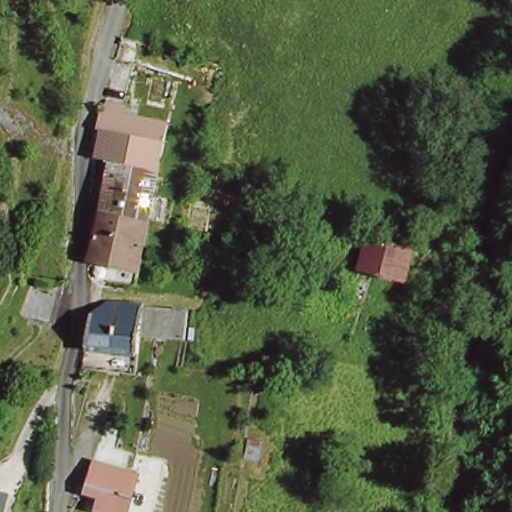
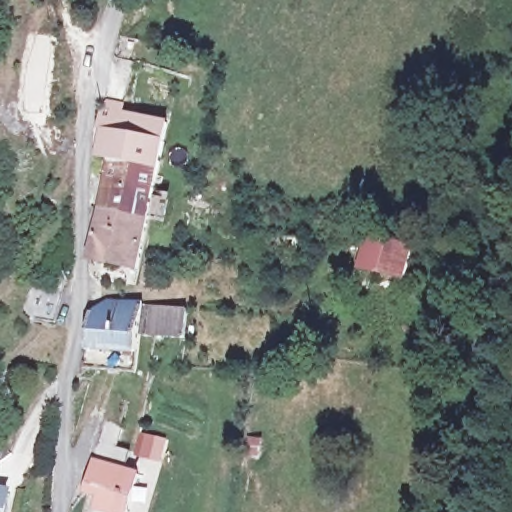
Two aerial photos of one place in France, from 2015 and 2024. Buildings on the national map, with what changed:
unchanged [(98,230),(101,210),(113,155),(103,153),(106,128),(100,127),(103,112),(109,113),(122,116),(163,123),(159,154),(151,218),(148,237),(146,254),(144,267),(118,263),(91,259),(98,230)]
unchanged [(412,280),(363,277),(364,241),(418,243),(412,280)]
unchanged [(73,306),(66,340),(33,334),(39,299),(73,306)]
unchanged [(163,328),(146,328),(138,379),(82,375),(93,303),(165,309),(163,328)]
unchanged [(134,512),(106,512),(109,495),(93,492),(98,465),(141,475),(134,512)]
unchanged [(0,512),(0,503),(5,505),(4,512),(0,512)]

